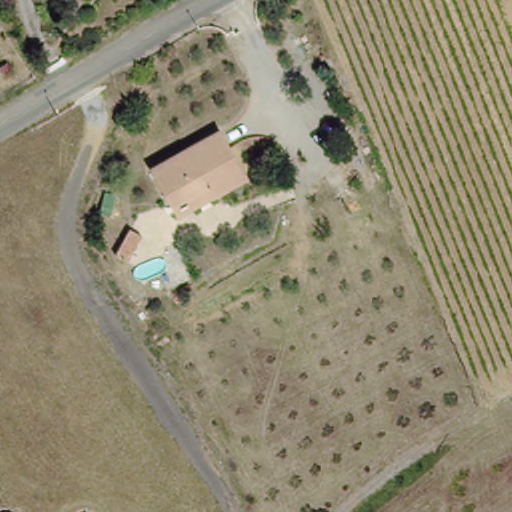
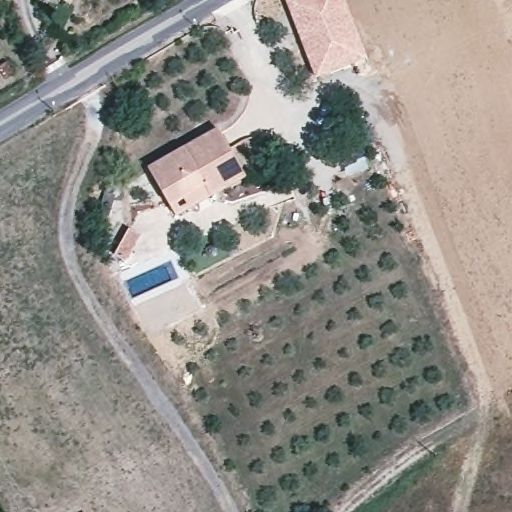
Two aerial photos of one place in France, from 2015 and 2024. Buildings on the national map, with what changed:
new [(316,80),(284,0),(345,0),(368,60),(316,80)]
unchanged [(171,204),(151,170),(219,130),(245,177),(211,196),(177,215),(171,204)]

